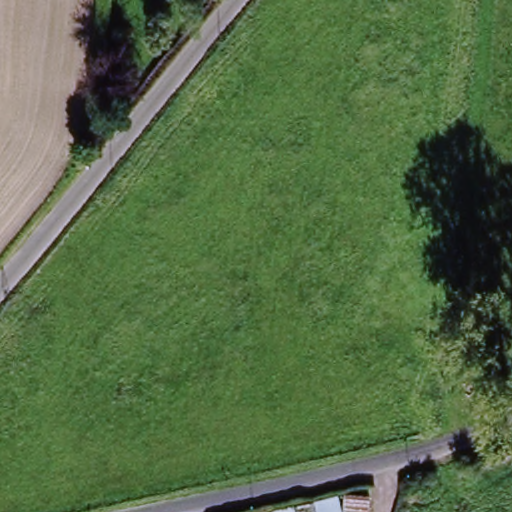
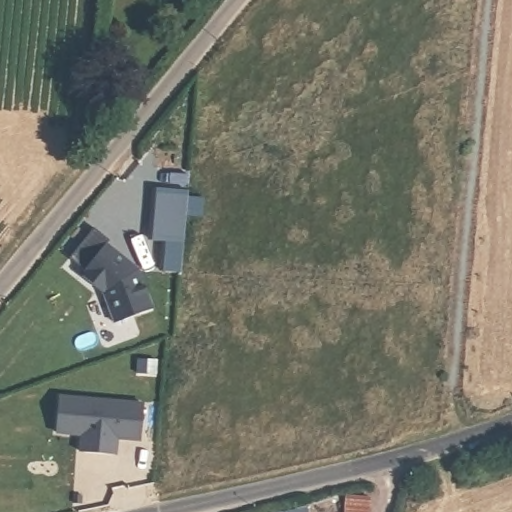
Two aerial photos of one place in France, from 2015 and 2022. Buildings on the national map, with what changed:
new [(155,187),(186,190),(179,274),(162,273),(164,242),(150,241),(155,187)]
new [(95,227),(111,239),(107,244),(119,253),(120,257),(132,267),(135,266),(140,269),(154,310),(116,325),(105,297),(80,274),(83,270),(69,258),(95,227)]
new [(56,394),(143,402),(140,438),(115,436),(113,453),(78,450),(80,432),(53,430),(56,394)]
unchanged [(347,496),(373,498),(371,512),(279,512),(347,496)]

